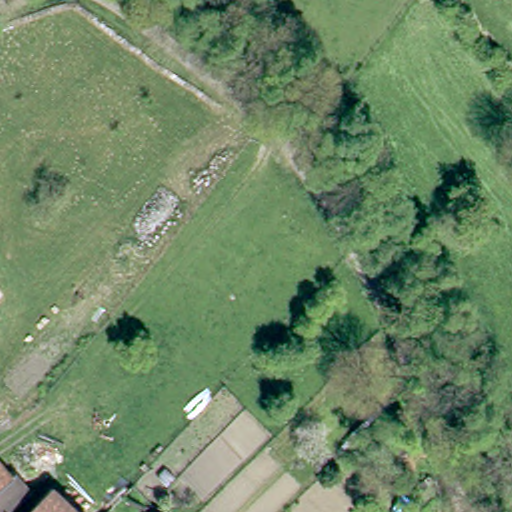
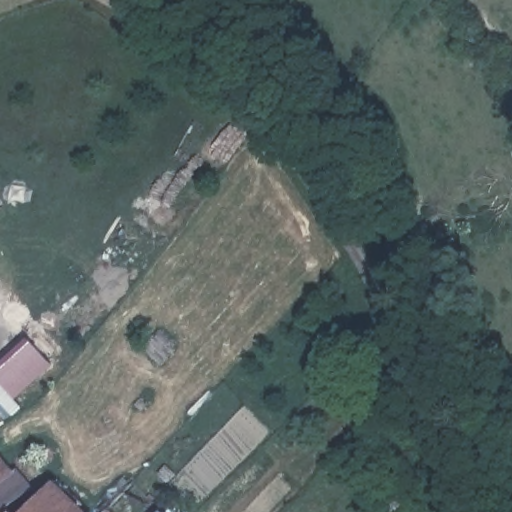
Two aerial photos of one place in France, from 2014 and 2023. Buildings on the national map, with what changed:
new [(10,418),(0,406),(0,363),(27,339),(52,366),(15,400),(21,408),(10,418)]
unchanged [(9,512),(0,512),(0,458),(31,494),(9,512)]
unchanged [(40,505),(65,495),(88,512),(31,512),(40,505)]

